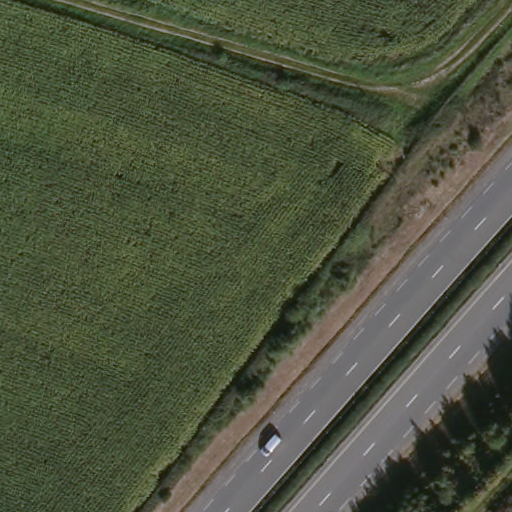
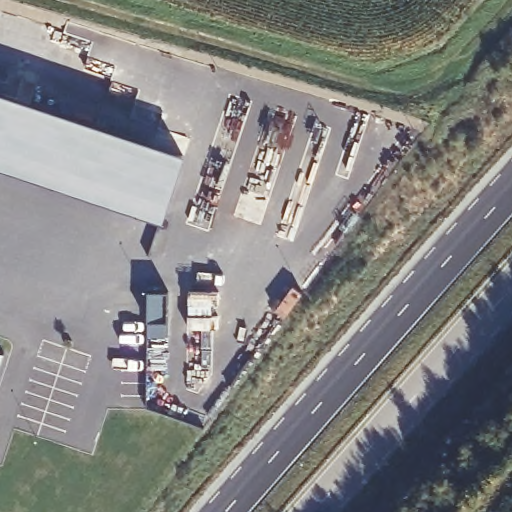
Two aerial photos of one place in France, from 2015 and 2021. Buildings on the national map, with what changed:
new [(167,203),(0,147),(0,96),(182,157),(167,203)]
new [(3,351),(4,352),(0,364),(0,353),(2,354),(3,351)]

